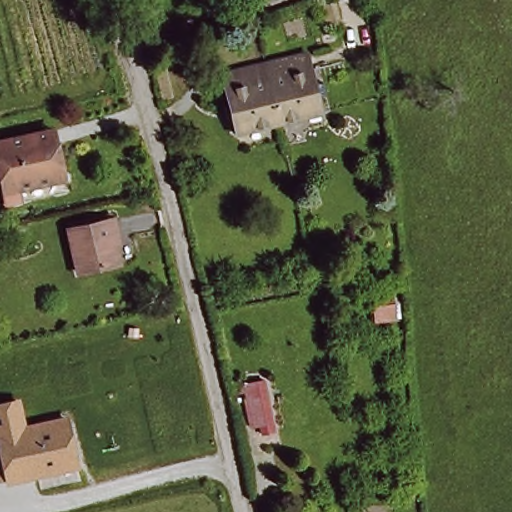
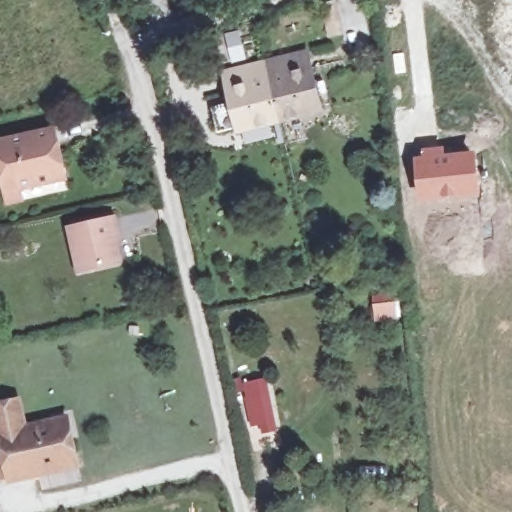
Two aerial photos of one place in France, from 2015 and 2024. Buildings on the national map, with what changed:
unchanged [(345,27),(326,32),(322,5),(340,0),(345,27)]
demolished [(179,100),(161,104),(151,65),(169,62),(179,100)]
unchanged [(310,64),(321,118),(281,127),(268,73),(310,64)]
unchanged [(225,82),(268,73),(281,127),(238,136),(225,82)]
unchanged [(0,138),(56,125),(70,183),(40,190),(3,198),(0,183),(0,138)]
new [(422,155),(422,147),(445,145),(446,153),(475,149),(480,195),(418,202),(413,156),(422,155)]
unchanged [(68,231),(113,221),(117,237),(112,238),(120,269),(80,278),(68,231)]
unchanged [(381,321),(376,299),(395,295),(400,317),(381,321)]
unchanged [(264,430),(262,420),(253,421),(248,399),(250,398),(247,382),(266,379),(276,417),(278,427),(264,430)]
unchanged [(0,427),(0,402),(20,399),(25,428),(55,421),(57,440),(74,436),(80,468),(13,483),(0,427)]

